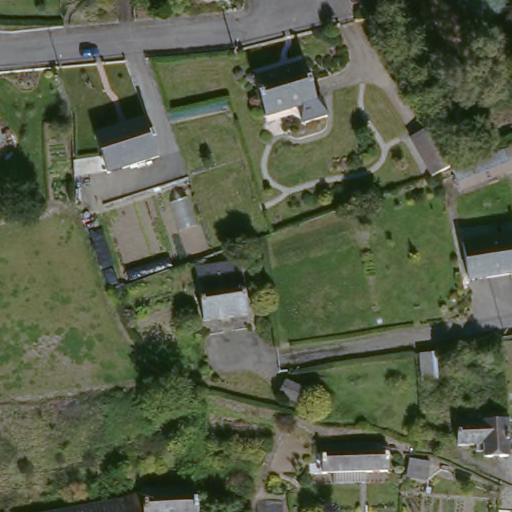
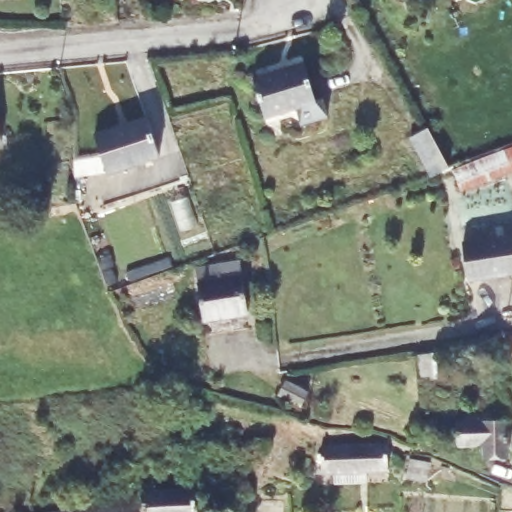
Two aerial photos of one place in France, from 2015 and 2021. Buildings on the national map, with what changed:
unchanged [(266,77),(298,67),(309,106),(318,104),(323,120),(299,127),(294,110),(279,115),(261,120),(250,81),(266,77)]
unchanged [(93,141),(141,125),(153,162),(105,178),(93,141)]
unchanged [(448,175),(436,179),(429,181),(426,182),(409,135),(431,128),(431,129),(448,175)]
unchanged [(460,196),(452,177),(512,152),(512,175),(460,196)]
unchanged [(511,235),(512,240),(512,272),(469,283),(461,249),(511,235)]
unchanged [(239,276),(238,331),(226,331),(196,331),(196,275),(198,275),(239,276)]
unchanged [(488,352),(486,340),(498,337),(501,350),(488,352)]
unchanged [(288,393),(308,405),(301,418),(281,405),(288,393)]
unchanged [(479,460),(478,445),(453,448),(451,425),(503,420),(505,458),(479,460)]
unchanged [(316,450),(382,446),(383,475),(318,478),(316,450)]
unchanged [(401,461),(426,460),(426,480),(401,481),(401,473),(401,461)]
unchanged [(186,495),(186,512),(134,512),(133,505),(133,497),(186,495)]
unchanged [(277,500),(277,512),(253,512),(253,500),(277,500)]
unchanged [(134,512),(99,512),(133,505),(134,512)]

